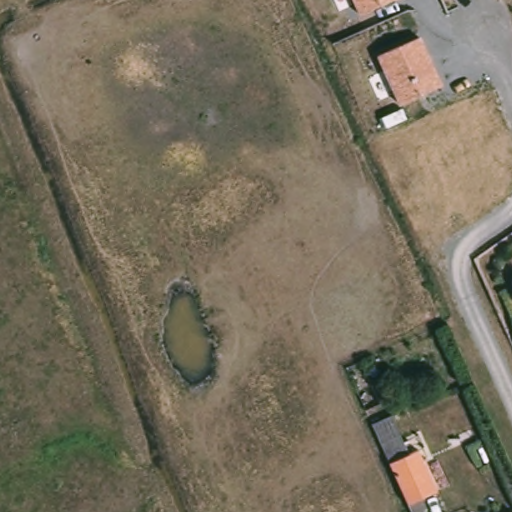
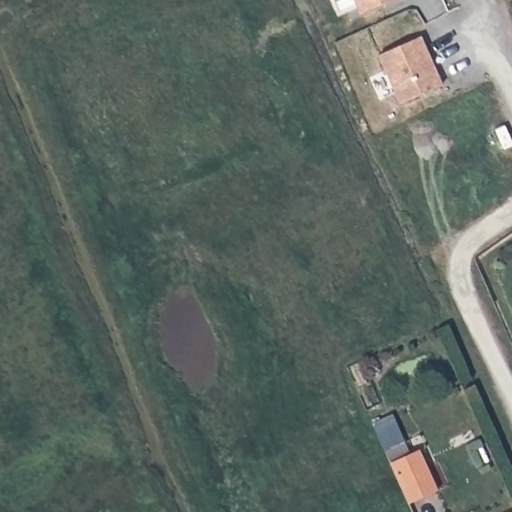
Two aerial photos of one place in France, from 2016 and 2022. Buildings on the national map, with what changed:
unchanged [(355,0),(392,0),(360,14),(355,0)]
unchanged [(421,35),(443,84),(401,104),(379,54),(421,35)]
unchanged [(412,454),(428,494),(402,505),(392,482),(385,465),(412,454)]

